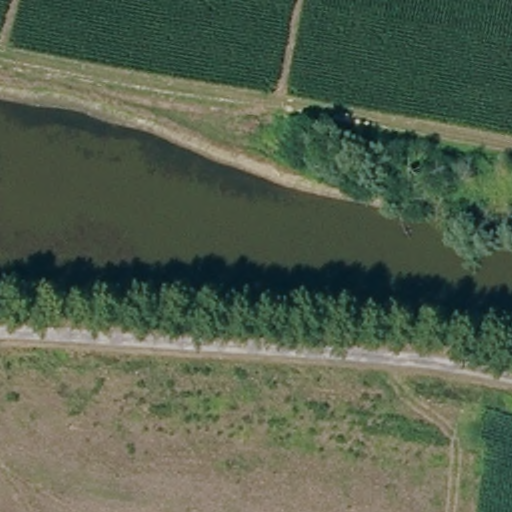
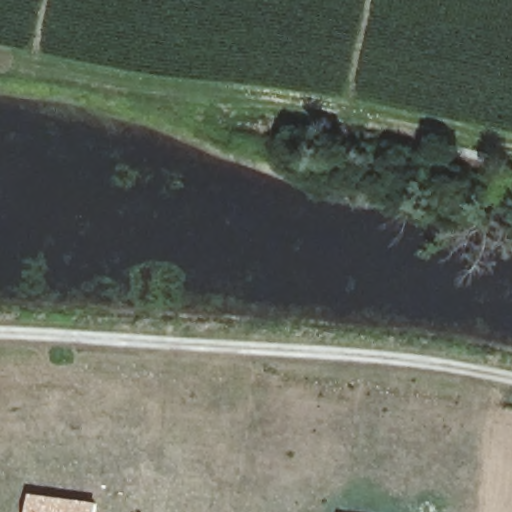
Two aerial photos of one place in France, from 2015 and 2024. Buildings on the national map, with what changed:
new [(31,493),(97,502),(96,512),(28,512),(31,493)]

